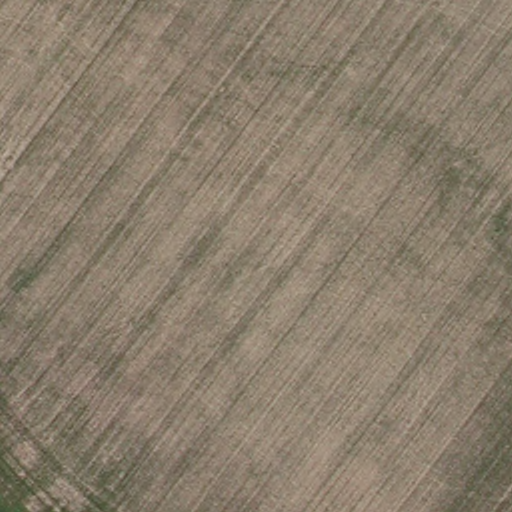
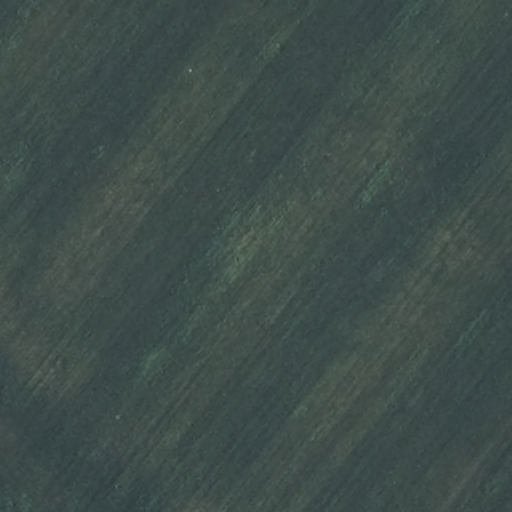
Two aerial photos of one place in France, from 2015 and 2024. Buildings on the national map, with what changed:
[]

